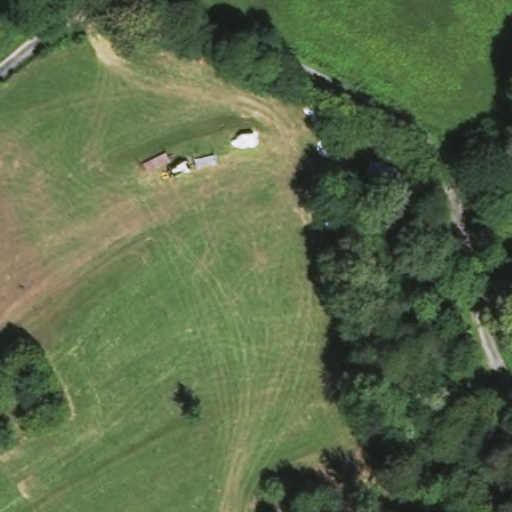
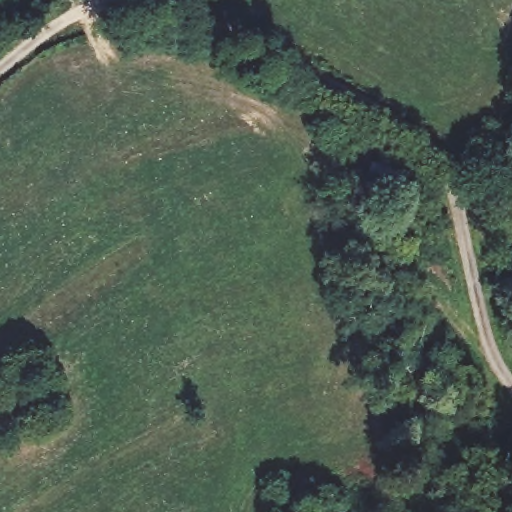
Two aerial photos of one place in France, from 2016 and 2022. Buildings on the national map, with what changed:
unchanged [(411,168),(399,202),(361,190),(371,160),(411,168)]

